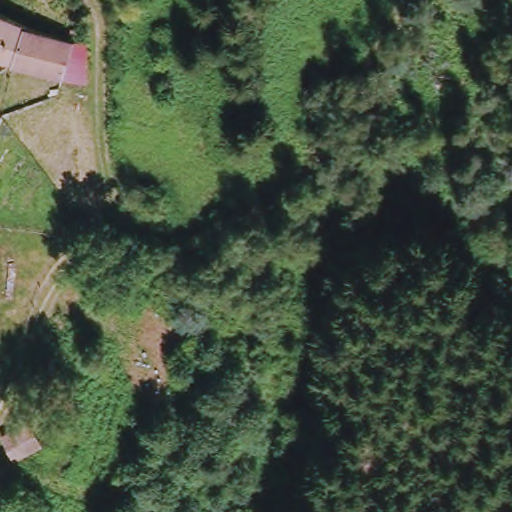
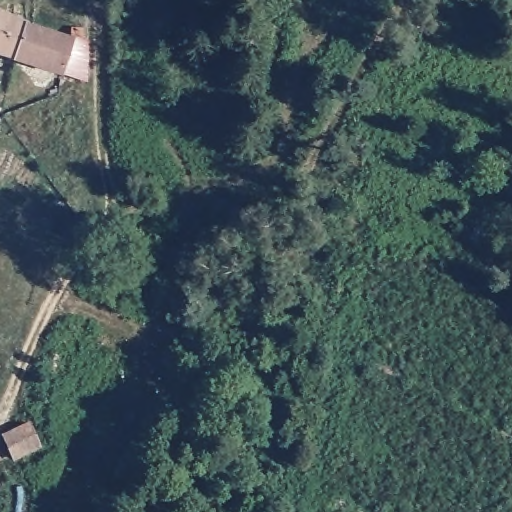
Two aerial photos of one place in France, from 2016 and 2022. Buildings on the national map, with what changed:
unchanged [(12,24),(0,58),(0,18),(12,24)]
unchanged [(55,45),(62,31),(77,32),(70,46),(72,60),(68,95),(0,63),(0,58),(12,24),(55,45)]

